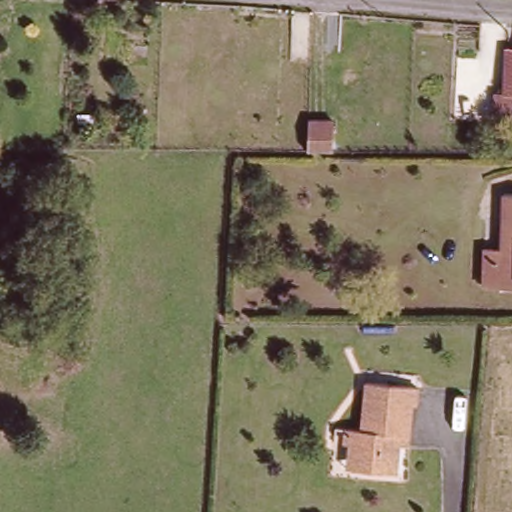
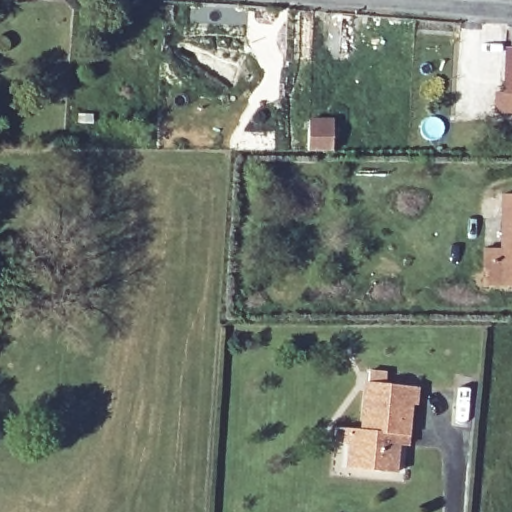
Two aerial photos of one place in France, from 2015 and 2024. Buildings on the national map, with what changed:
unchanged [(512,56),(512,97),(504,97),(505,56),(512,56)]
unchanged [(337,115),(337,152),(307,152),(309,114),(337,115)]
unchanged [(480,253),(498,253),(499,200),(512,200),(512,289),(482,291),(480,253)]
unchanged [(351,450),(353,430),(365,431),(370,382),(421,389),(412,436),(404,435),(400,474),(360,469),(350,468),(351,450)]

